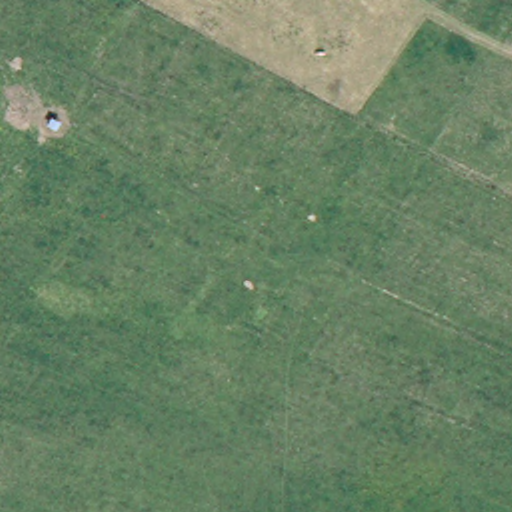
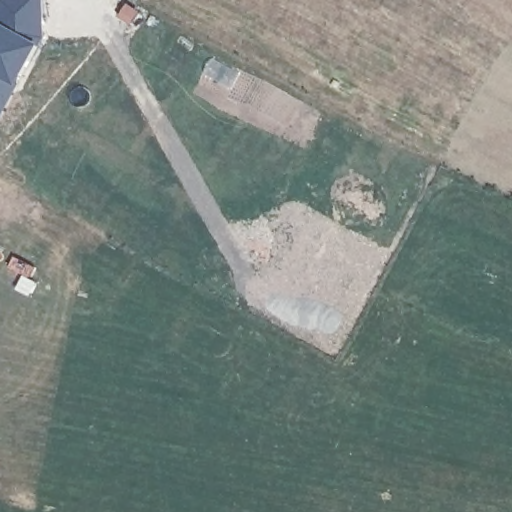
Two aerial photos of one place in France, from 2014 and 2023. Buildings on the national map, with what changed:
new [(0,32),(3,27),(2,0),(44,0),(44,34),(0,119),(0,32)]

